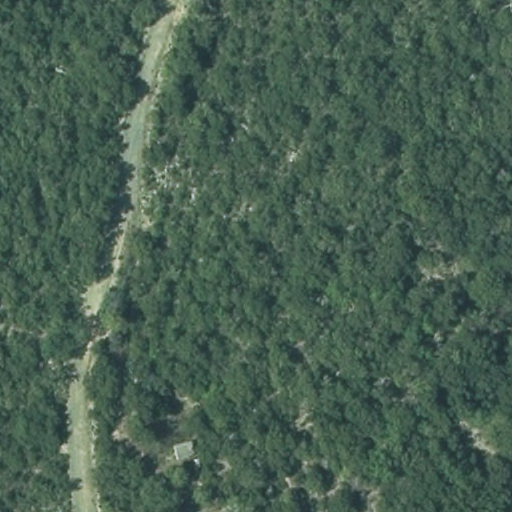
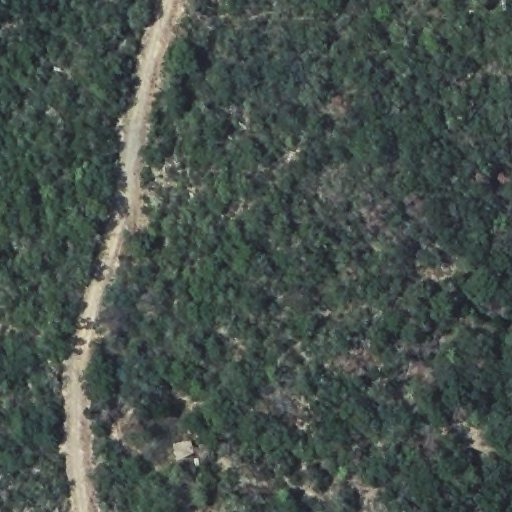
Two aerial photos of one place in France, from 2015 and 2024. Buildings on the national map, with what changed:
unchanged [(188,441),(192,456),(174,460),(170,446),(188,441)]

